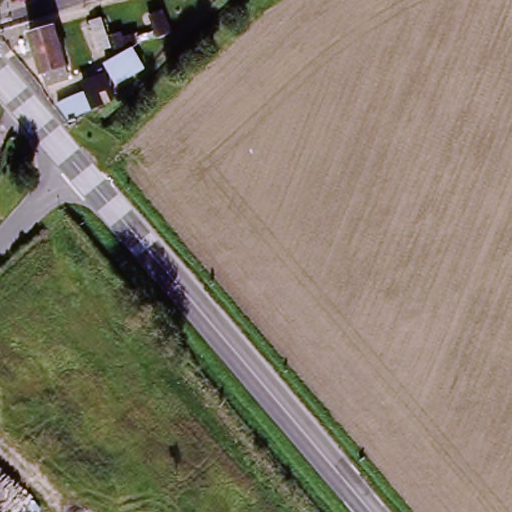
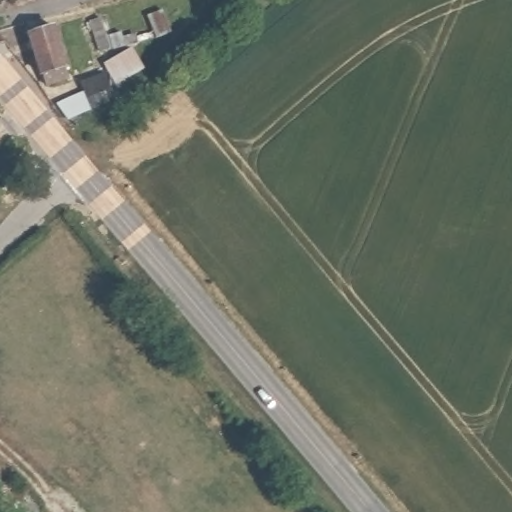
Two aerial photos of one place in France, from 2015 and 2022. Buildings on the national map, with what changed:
unchanged [(172,34),(99,53),(89,22),(100,16),(107,39),(152,31),(150,16),(163,9),(172,34)]
unchanged [(69,68),(74,82),(47,90),(42,72),(39,73),(28,37),(62,29),(72,65),(69,68)]
unchanged [(146,73),(114,90),(120,104),(67,120),(60,107),(84,94),(82,86),(107,77),(102,67),(132,49),(146,73)]

